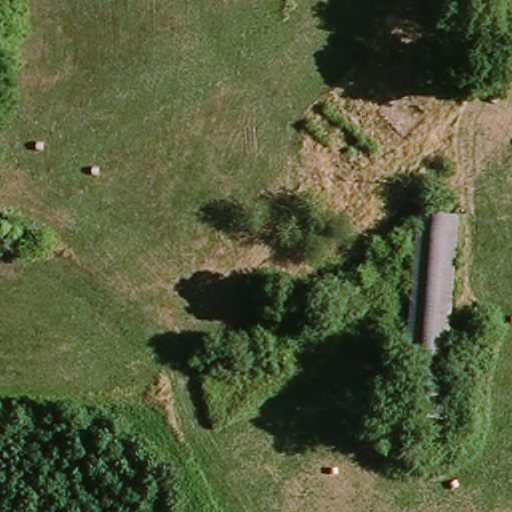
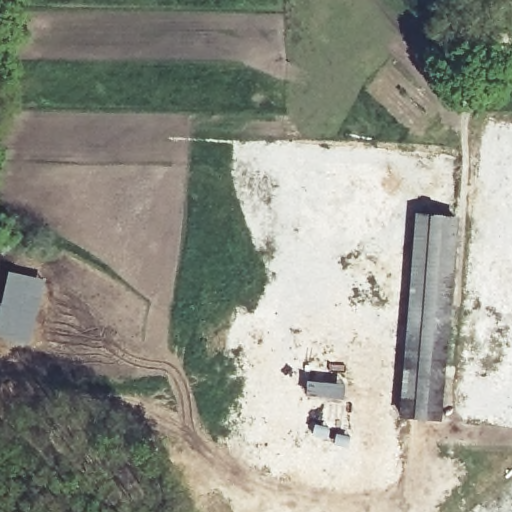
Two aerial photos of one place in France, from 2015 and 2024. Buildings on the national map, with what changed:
unchanged [(395,406),(416,206),(456,211),(434,411),(395,406)]
new [(9,271),(45,280),(29,343),(0,336),(0,308),(9,271)]

